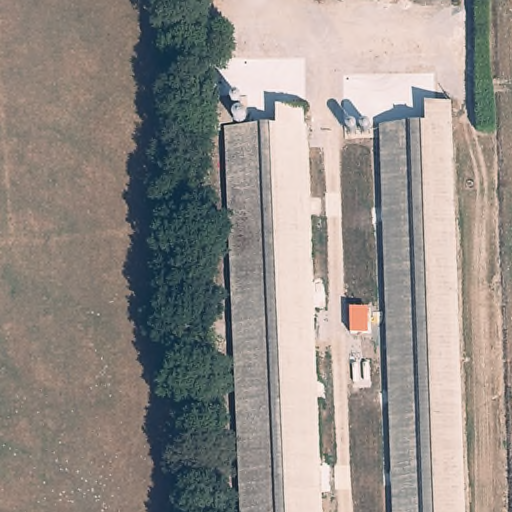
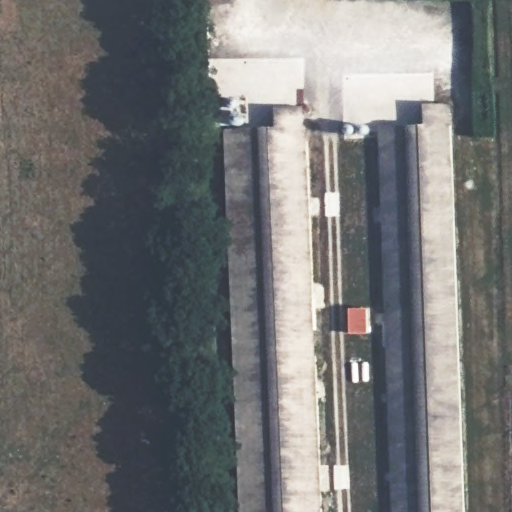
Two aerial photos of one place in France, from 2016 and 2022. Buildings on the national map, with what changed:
unchanged [(216,105),(237,105),(237,131),(217,132),(216,105)]
unchanged [(425,110),(450,110),(451,130),(448,130),(462,512),(394,512),(381,132),(426,130),(425,110)]
unchanged [(232,135),(282,133),(281,114),(307,112),(323,512),(248,512),(232,135)]

